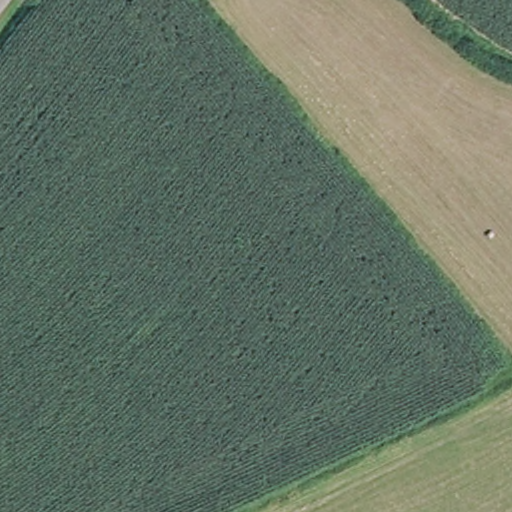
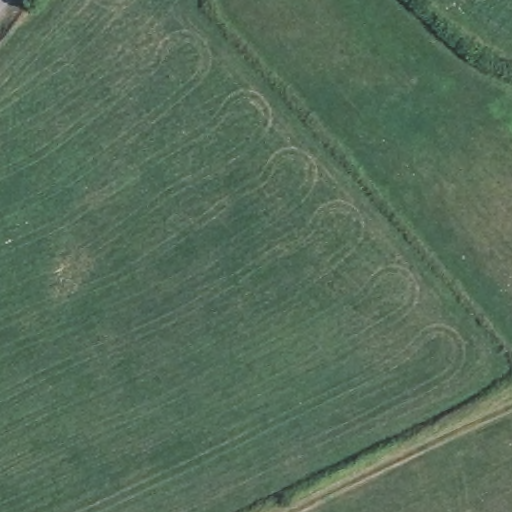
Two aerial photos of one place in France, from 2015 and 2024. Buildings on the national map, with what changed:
[]

